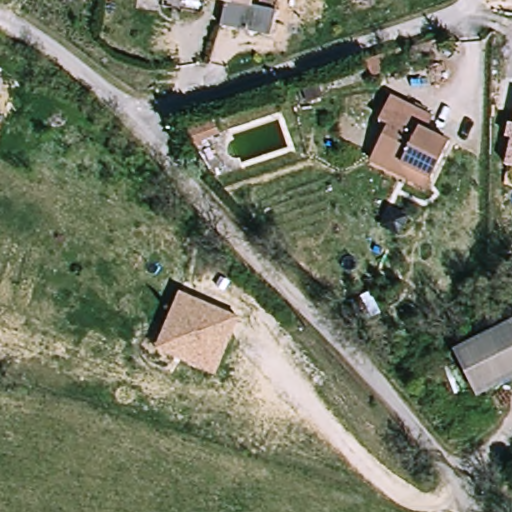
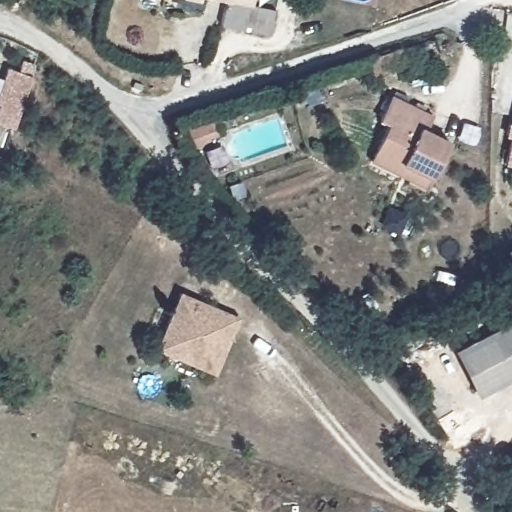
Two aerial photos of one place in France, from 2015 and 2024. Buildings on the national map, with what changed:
unchanged [(279,11),(273,34),(222,24),(227,0),(259,0),(258,7),(279,11)]
unchanged [(382,44),(410,35),(414,46),(386,55),(382,44)]
new [(21,60),(34,65),(30,77),(13,127),(0,123),(0,89),(7,68),(17,71),(21,60)]
unchanged [(371,158),(376,150),(392,123),(385,119),(399,93),(437,114),(430,125),(455,139),(435,177),(428,190),(371,158)]
unchanged [(194,145),(189,125),(201,121),(219,116),(221,126),(202,131),(205,143),(194,145)]
unchanged [(502,164),(512,126),(512,166),(502,164)]
unchanged [(160,337),(172,306),(177,294),(185,297),(235,316),(213,374),(179,360),(155,351),(160,337)]
unchanged [(512,323),(512,378),(483,392),(462,348),(512,323)]

